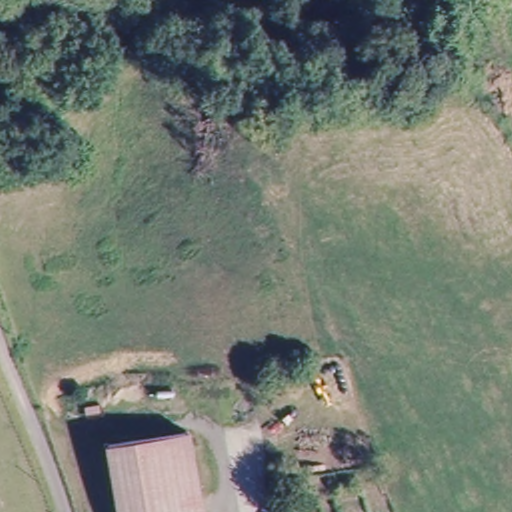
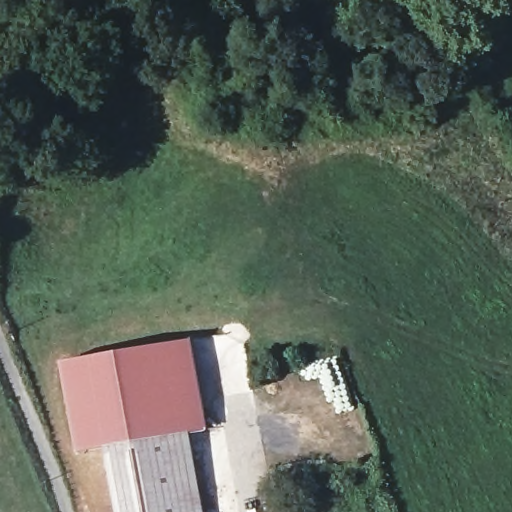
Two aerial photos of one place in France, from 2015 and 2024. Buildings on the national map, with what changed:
new [(75,451),(59,361),(193,339),(208,430),(184,434),(105,447),(75,451)]
unchanged [(198,512),(117,512),(105,447),(184,434),(198,512)]

